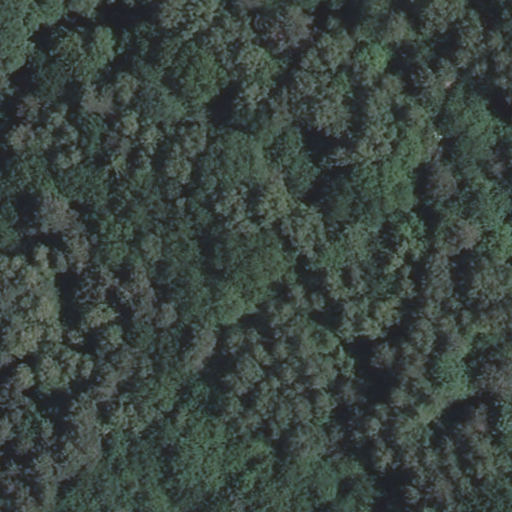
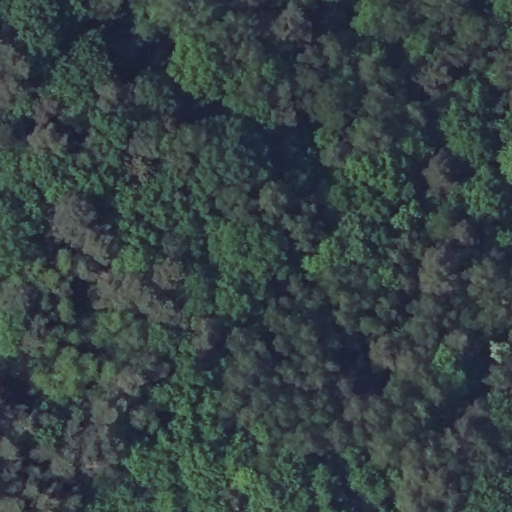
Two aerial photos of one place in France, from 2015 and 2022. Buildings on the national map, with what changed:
[]

